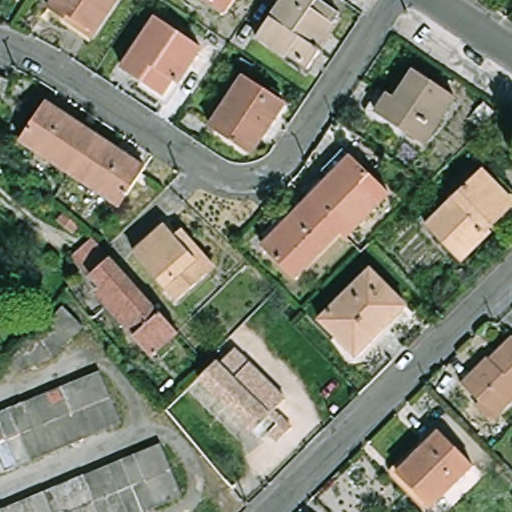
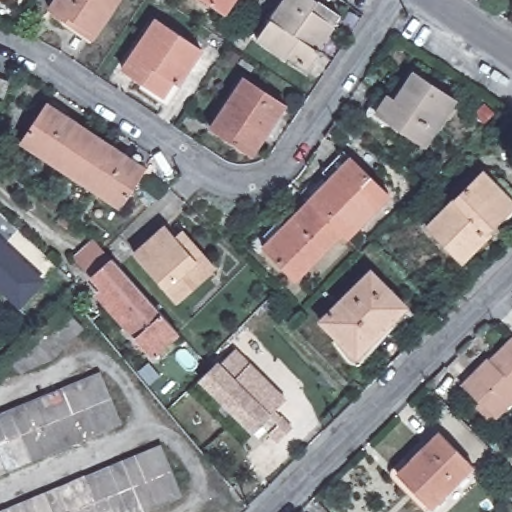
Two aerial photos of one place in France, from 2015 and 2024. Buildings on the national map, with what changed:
unchanged [(65,18),(67,14),(52,4),(55,0),(117,0),(98,28),(93,37),(65,18)]
unchanged [(226,11),(210,0),(234,0),(226,11)]
unchanged [(325,50),(313,68),(293,55),(290,60),(260,40),(287,0),(317,0),(330,8),(341,16),(335,25),(320,47),(325,50)]
unchanged [(128,60),(157,16),(203,47),(180,81),(175,78),(165,94),(139,77),(124,66),(128,60)]
unchanged [(410,135),(378,114),(389,97),(397,102),(416,73),(458,100),(427,147),(410,135)]
unchanged [(286,101),(253,150),(214,124),(246,74),(286,101)]
unchanged [(6,79),(2,93),(0,92),(0,75),(7,77),(6,79)]
unchanged [(51,100),(97,135),(92,142),(70,172),(23,137),(51,100)]
unchanged [(145,172),(117,208),(70,172),(92,142),(97,135),(145,172)]
unchanged [(349,236),(343,230),(311,199),(333,175),(327,170),(346,150),(351,155),(391,192),(349,236)]
unchanged [(462,258),(427,223),(481,170),(495,183),(498,179),(512,193),(512,205),(510,207),(494,222),(487,230),(489,232),(462,258)]
unchanged [(299,278),(266,247),(311,199),(343,230),(299,278)]
unchanged [(137,250),(165,223),(174,233),(182,226),(215,261),(207,268),(179,295),(137,250)]
new [(45,282),(20,308),(0,290),(0,238),(45,282)]
unchanged [(150,357),(122,325),(94,294),(102,287),(92,276),(75,258),(92,242),(109,260),(175,334),(150,357)]
unchanged [(374,272),(411,308),(393,326),(389,321),(357,353),(325,321),(374,272)]
unchanged [(63,308),(82,327),(52,358),(21,371),(10,360),(63,308)]
unchanged [(488,359),(490,361),(512,340),(512,404),(496,419),(461,385),(488,359)]
unchanged [(289,398),(271,416),(288,432),(280,439),(268,428),(262,434),(206,379),(219,366),(222,369),(224,366),(239,350),(252,362),(289,398)]
unchanged [(99,371),(120,423),(0,473),(0,413),(99,371)]
unchanged [(439,431),(473,465),(430,508),(397,474),(439,431)]
unchanged [(181,495),(141,512),(0,512),(160,444),(181,495)]
unchanged [(231,488),(224,480),(242,465),(248,473),(231,488)]

